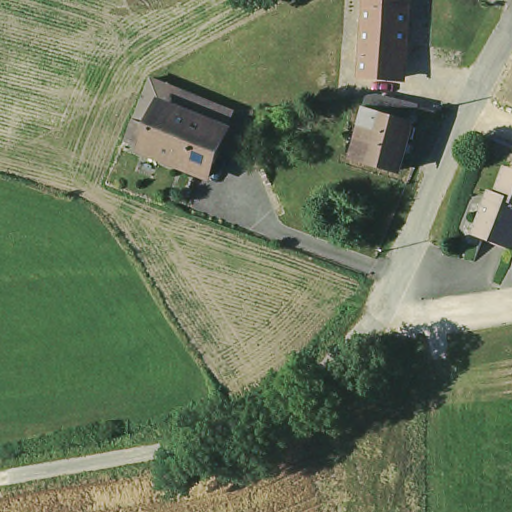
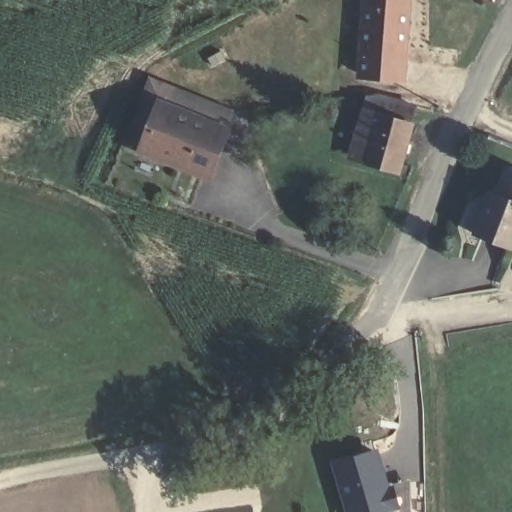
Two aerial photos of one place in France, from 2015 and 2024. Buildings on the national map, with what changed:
unchanged [(359,77),(362,0),(413,0),(406,81),(359,77)]
unchanged [(217,117),(223,120),(216,137),(156,112),(138,159),(119,150),(143,88),(217,117)]
unchanged [(371,146),(379,116),(385,117),(387,110),(411,115),(407,127),(403,145),(410,147),(408,155),(400,154),(396,172),(367,164),(350,159),(354,141),(371,146)]
unchanged [(200,184),(138,159),(156,112),(216,137),(200,184)]
unchanged [(512,249),(476,235),(487,205),(491,195),(500,197),(510,170),(512,171),(512,249)]
new [(392,485),(396,483),(404,507),(389,512),(348,512),(331,462),(381,447),(392,485)]

